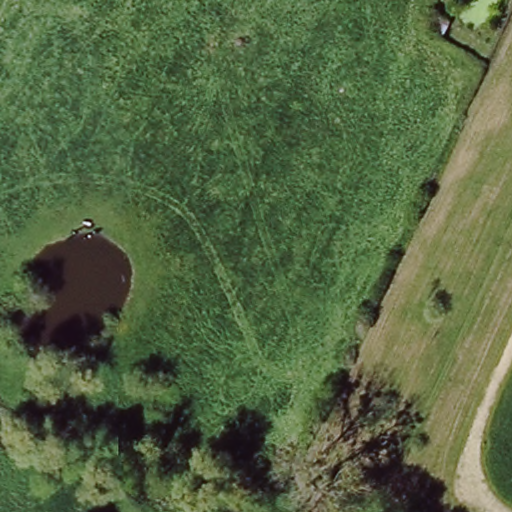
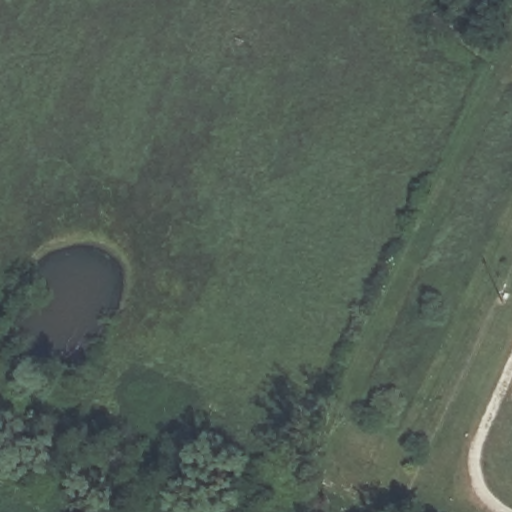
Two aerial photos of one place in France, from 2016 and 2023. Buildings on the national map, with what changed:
unchanged [(440,11),(451,17),(444,29),(433,23),(440,11)]

